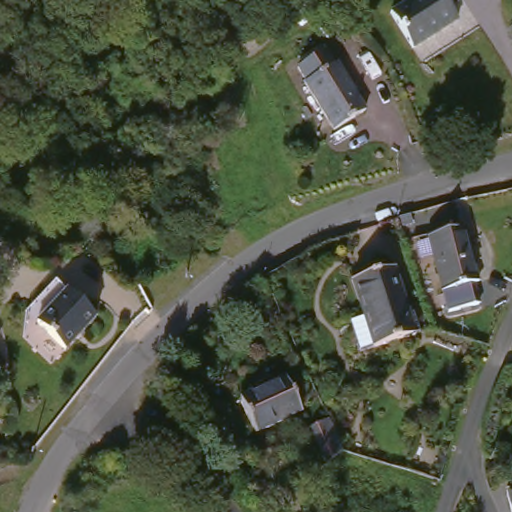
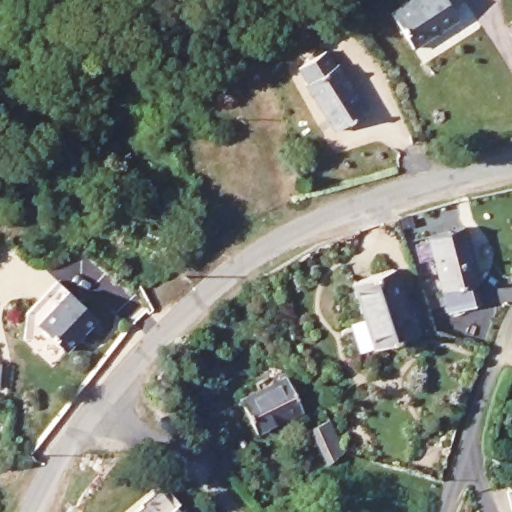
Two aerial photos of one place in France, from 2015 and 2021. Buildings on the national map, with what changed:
unchanged [(455,27),(410,55),(388,20),(417,0),(457,0),(460,5),(447,14),(455,27)]
unchanged [(297,96),(302,91),(292,78),(311,62),(322,74),(327,70),(362,113),(334,137),(297,96)]
unchanged [(232,72),(234,93),(219,94),(219,74),(232,72)]
unchanged [(482,293),(474,295),(479,313),(450,321),(430,248),(466,237),(482,293)]
unchanged [(350,330),(363,325),(352,290),(391,275),(415,341),(374,355),(373,353),(359,358),(350,330)]
unchanged [(96,307),(66,342),(37,317),(67,281),(96,307)]
unchanged [(282,380),(300,416),(254,438),(237,403),(282,380)]
unchanged [(322,418),(342,457),(327,469),(305,427),(322,418)]
new [(142,506),(140,505),(159,489),(177,512),(135,512),(142,506)]
new [(185,511),(185,512),(183,512),(185,511)]

